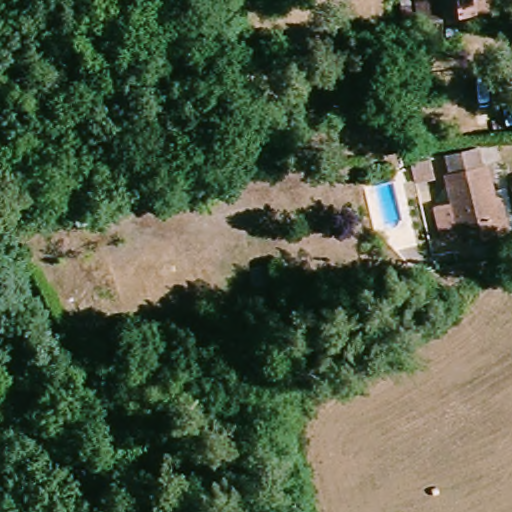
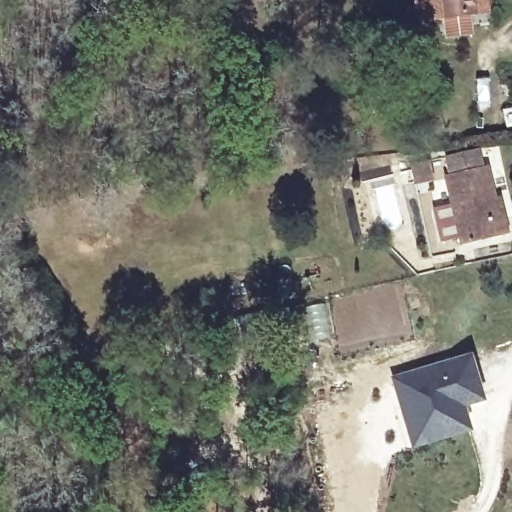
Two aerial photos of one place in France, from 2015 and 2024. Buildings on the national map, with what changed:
unchanged [(475,17),(414,22),(412,0),(487,0),(488,17),(475,17)]
unchanged [(451,162),(482,156),(485,173),(490,172),(502,225),(509,223),(512,237),(512,243),(464,252),(449,181),(454,180),(451,162)]
unchanged [(438,165),(441,185),(424,187),(420,168),(438,165)]
new [(414,448),(392,377),(472,354),(486,401),(466,407),(473,429),(414,448)]

